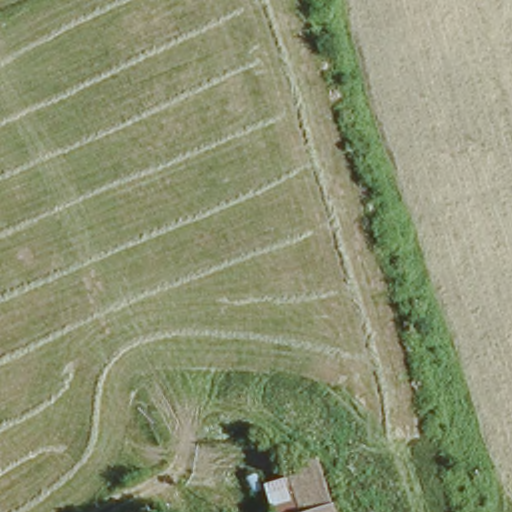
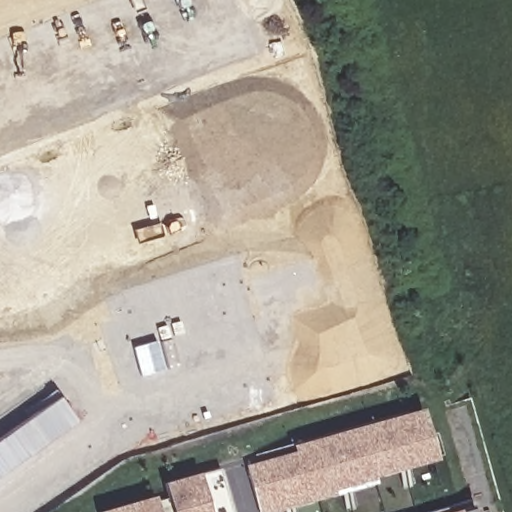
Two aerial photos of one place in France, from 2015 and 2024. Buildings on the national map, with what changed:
new [(388,480),(277,512),(268,512),(251,458),(310,441),(312,447),(427,412),(442,455),(386,474),(388,480)]
demolished [(260,480),(287,467),(284,460),(318,454),(332,512),(266,512),(260,480)]
new [(229,466),(242,512),(180,512),(172,482),(229,466)]
new [(163,496),(168,512),(109,512),(163,496)]

